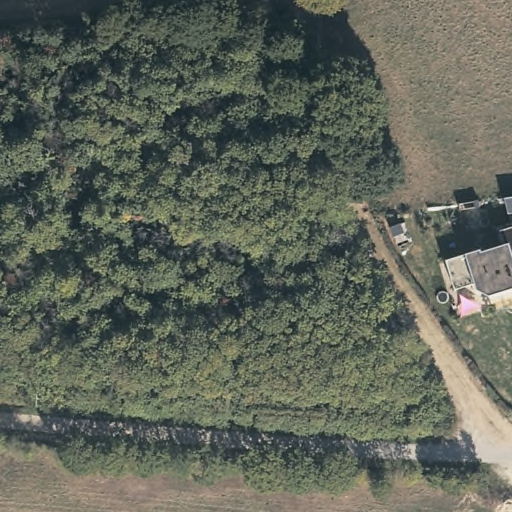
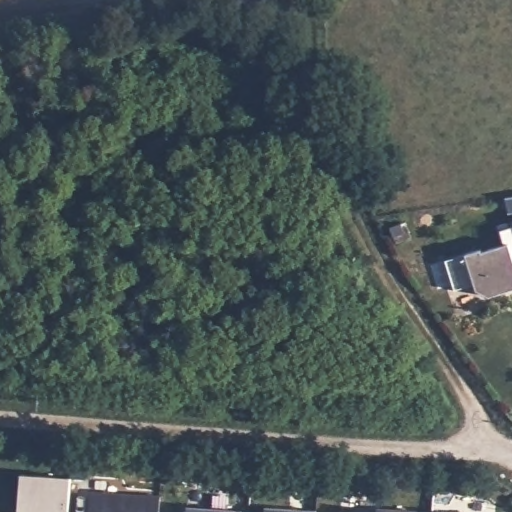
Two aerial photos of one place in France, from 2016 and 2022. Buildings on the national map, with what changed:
new [(512,196),(512,212),(507,213),(503,198),(512,196)]
unchanged [(483,248),(484,251),(506,243),(502,229),(512,225),(512,288),(493,295),(480,289),(478,283),(459,290),(448,260),(483,248)]
new [(20,475),(71,477),(68,512),(18,512),(20,475)]
new [(89,492),(158,497),(157,512),(88,512),(89,492)]
new [(265,508),(316,511),(316,512),(265,512),(265,508)]
unchanged [(378,509),(418,512),(379,512),(378,509)]
new [(189,510),(216,512),(188,512),(189,510)]

